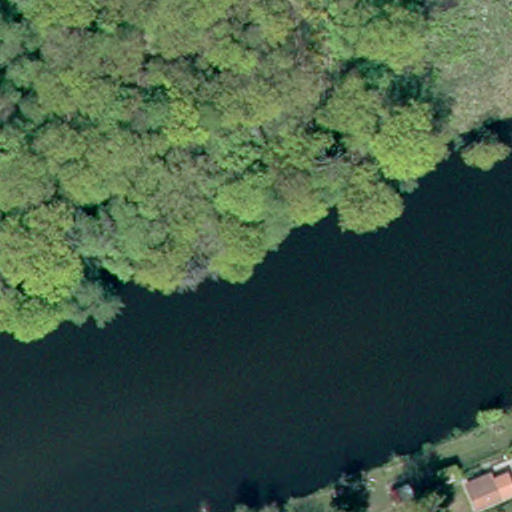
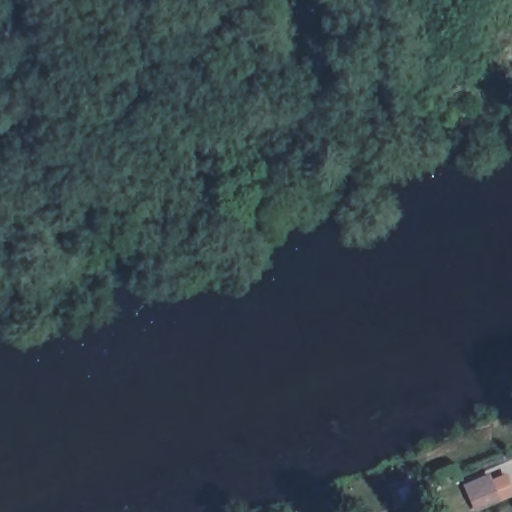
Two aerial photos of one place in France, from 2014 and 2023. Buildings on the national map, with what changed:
unchanged [(465,492),(490,481),(497,497),(472,508),(465,492)]

